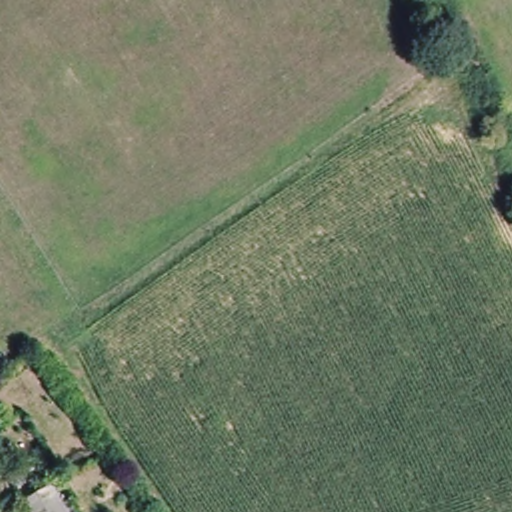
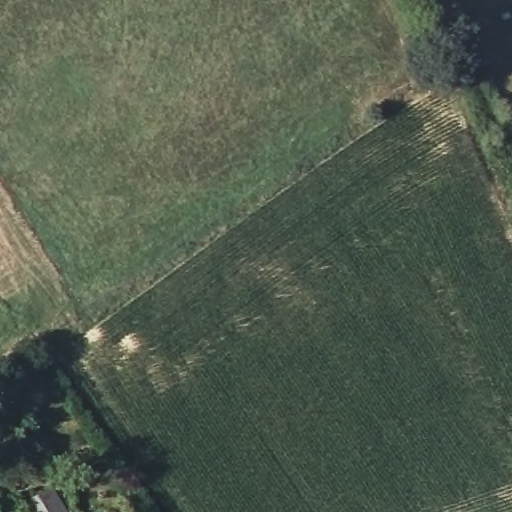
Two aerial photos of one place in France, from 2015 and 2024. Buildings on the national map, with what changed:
unchanged [(21,506),(52,487),(67,512),(25,512),(21,506)]

